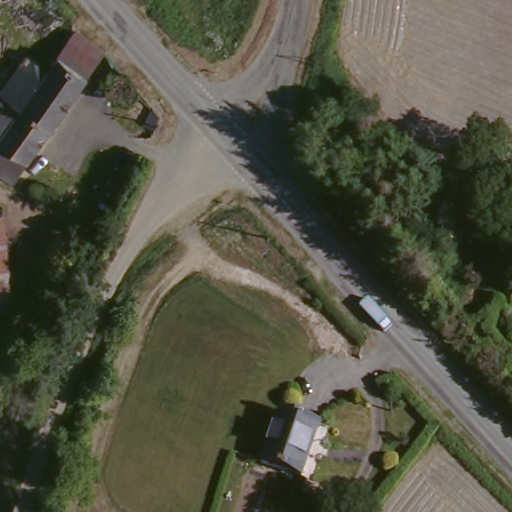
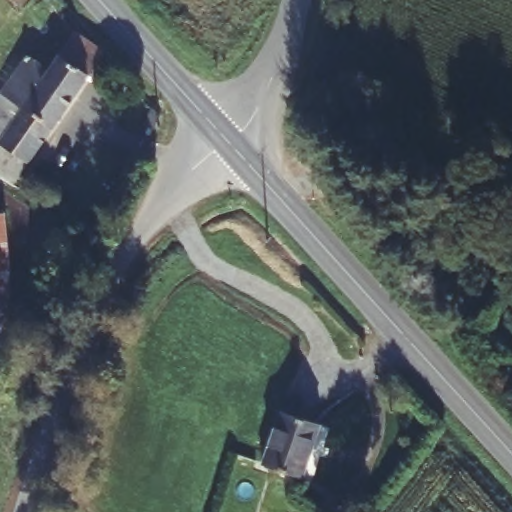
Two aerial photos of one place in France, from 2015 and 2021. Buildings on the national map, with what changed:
unchanged [(0,166),(0,144),(0,143),(0,101),(34,54),(54,67),(65,52),(80,29),(96,40),(108,49),(94,70),(79,92),(19,180),(0,166)]
unchanged [(150,126),(138,122),(145,102),(156,106),(150,126)]
unchanged [(0,218),(14,219),(14,306),(0,306),(0,218)]
unchanged [(323,421),(308,473),(269,461),(285,407),(323,421)]

